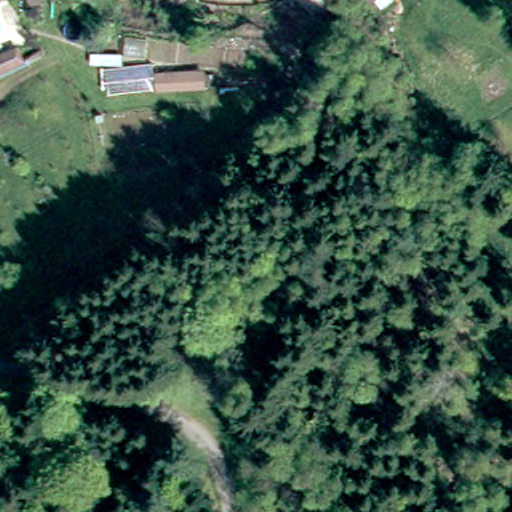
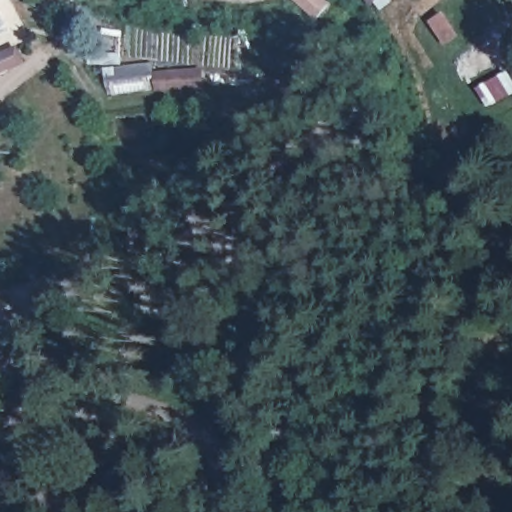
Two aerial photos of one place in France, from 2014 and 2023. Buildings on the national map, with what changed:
unchanged [(366,0),(391,0),(385,4),(380,7),(373,12),(366,0)]

